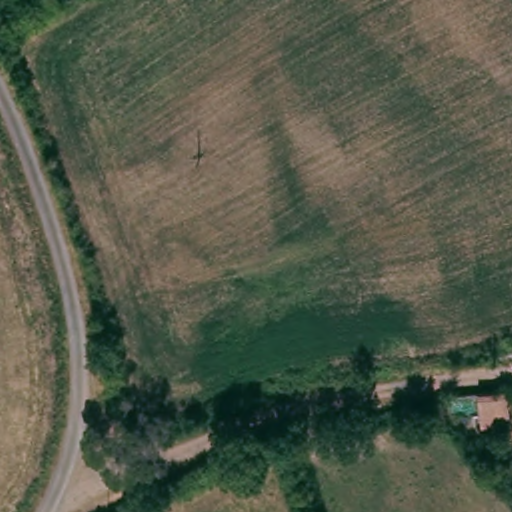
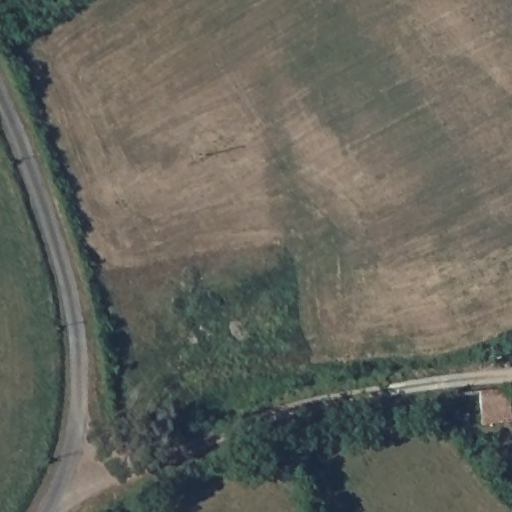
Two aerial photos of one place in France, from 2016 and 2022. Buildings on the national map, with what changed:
unchanged [(467,406),(466,402),(497,390),(505,407),(510,420),(477,431),(467,406)]

